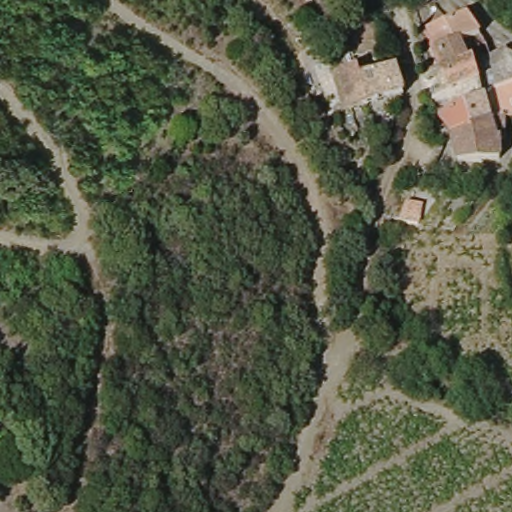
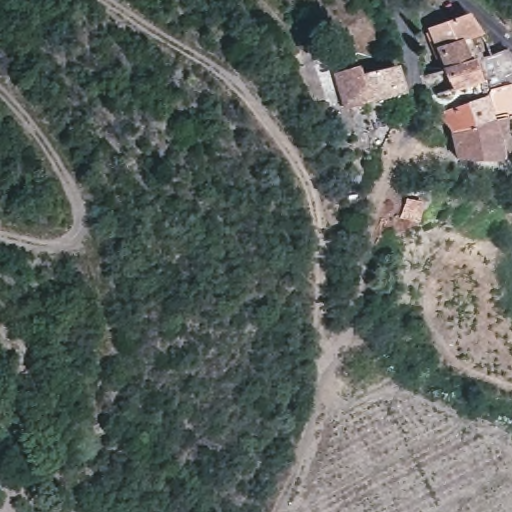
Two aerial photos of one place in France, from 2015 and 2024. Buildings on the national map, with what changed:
unchanged [(442,0),(440,1),(440,0),(442,0)]
unchanged [(424,24),(463,16),(470,32),(460,36),(478,90),(488,86),(512,81),(512,113),(507,115),(445,128),(435,112),(456,102),(441,66),(424,24)]
unchanged [(334,76),(377,61),(389,91),(345,106),(334,76)]
unchanged [(445,128),(507,115),(502,136),(497,137),(497,157),(455,157),(445,128)]

